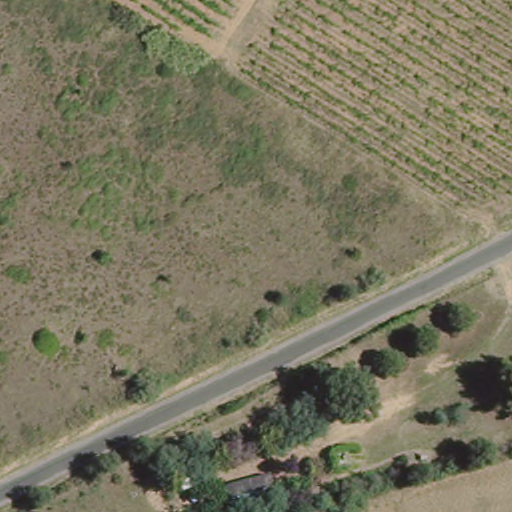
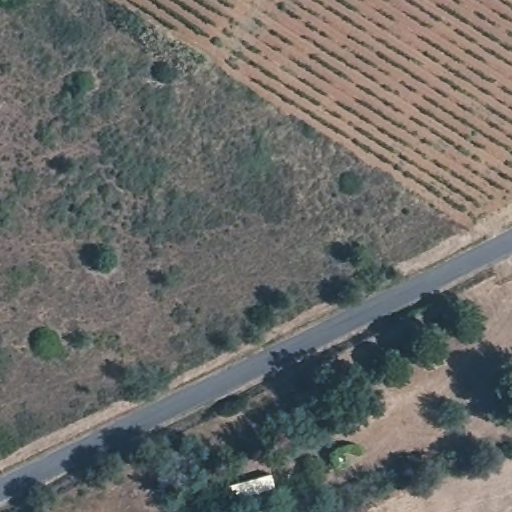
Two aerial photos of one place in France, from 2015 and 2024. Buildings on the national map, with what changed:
unchanged [(271,470),(280,486),(226,501),(222,484),(271,470)]

